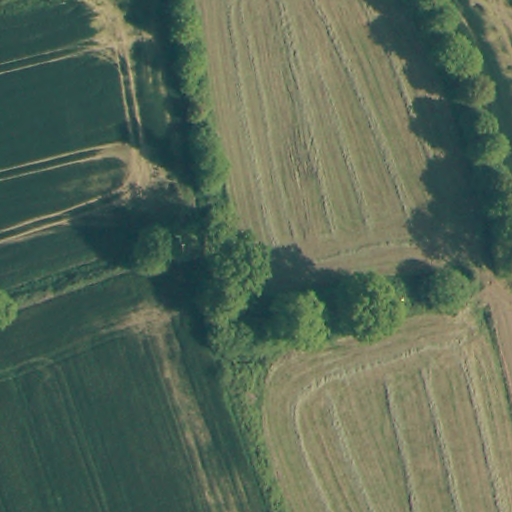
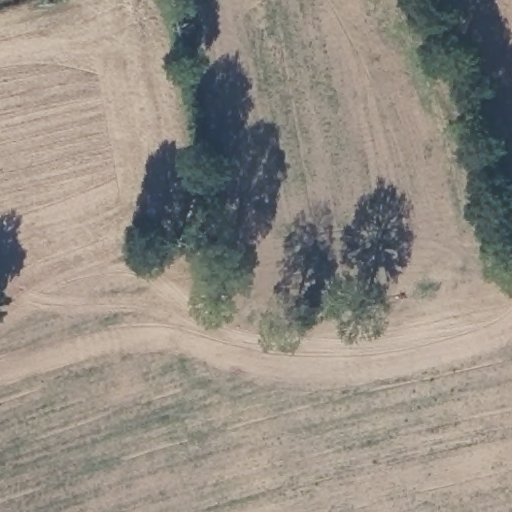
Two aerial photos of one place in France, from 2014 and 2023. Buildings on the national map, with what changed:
[]

